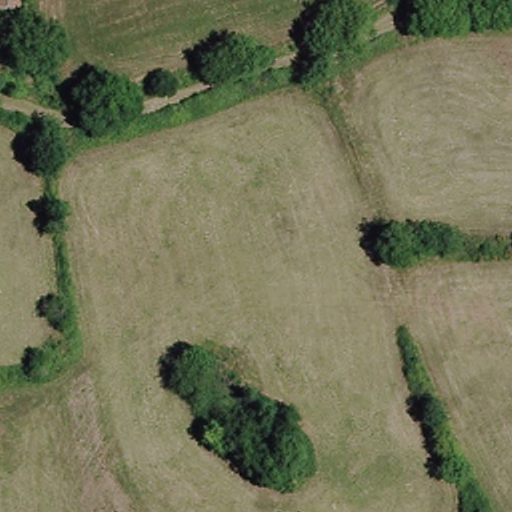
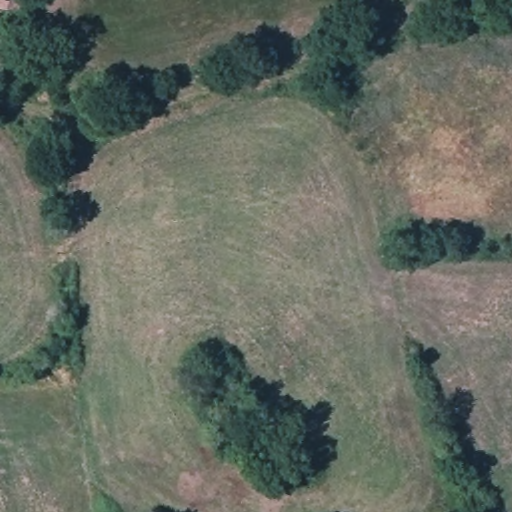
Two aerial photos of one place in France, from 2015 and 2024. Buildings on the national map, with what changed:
unchanged [(1,6),(1,0),(20,0),(20,9),(1,6)]

